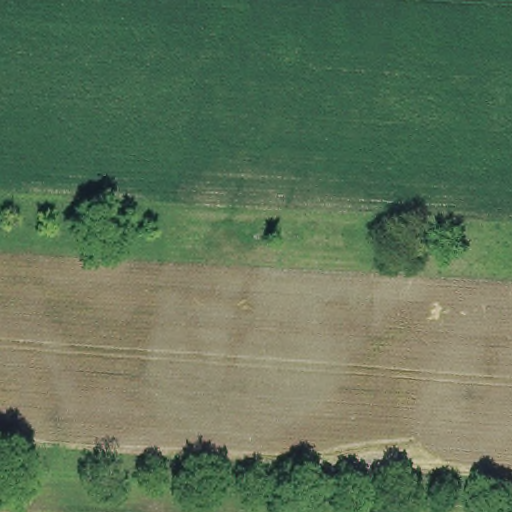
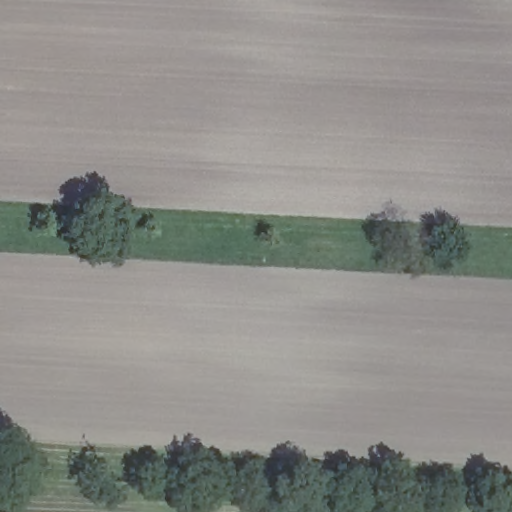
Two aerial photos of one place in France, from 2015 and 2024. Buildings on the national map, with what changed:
[]

